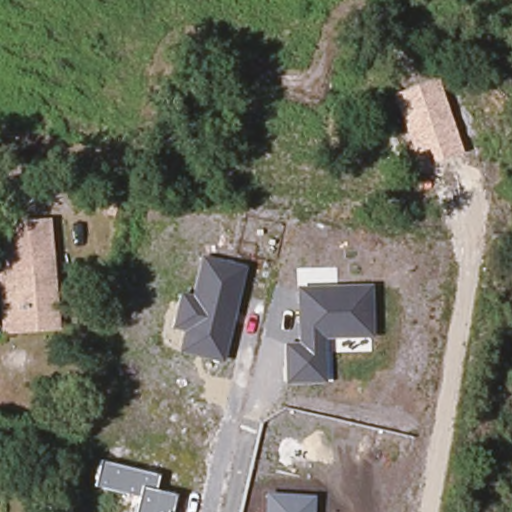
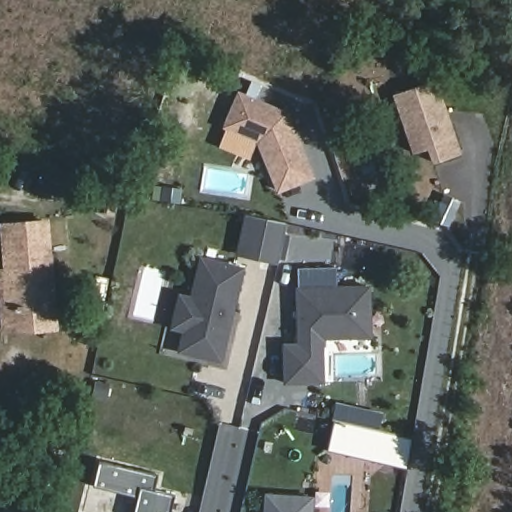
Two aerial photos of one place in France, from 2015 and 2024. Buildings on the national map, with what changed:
unchanged [(431,164),(426,151),(414,154),(393,93),(437,79),(462,153),(431,164)]
new [(287,111),(315,178),(277,193),(256,142),(222,128),(237,90),(287,111)]
new [(235,254),(245,212),(287,222),(277,263),(235,254)]
unchanged [(7,336),(1,277),(4,277),(2,251),(0,232),(0,225),(8,225),(42,222),(54,331),(7,336)]
unchanged [(222,363),(176,354),(182,332),(170,329),(179,292),(191,295),(200,256),(246,266),(222,363)]
unchanged [(372,337),(322,340),(324,383),(285,385),(282,343),(299,342),(297,287),(370,283),(372,337)]
new [(341,406),(356,410),(386,417),(382,431),(416,439),(410,470),(331,451),(337,421),(341,406)]
unchanged [(134,512),(137,497),(95,487),(101,462),(157,474),(155,491),(176,495),(172,512),(134,512)]
unchanged [(313,496),(312,512),(262,512),(263,492),(313,496)]

